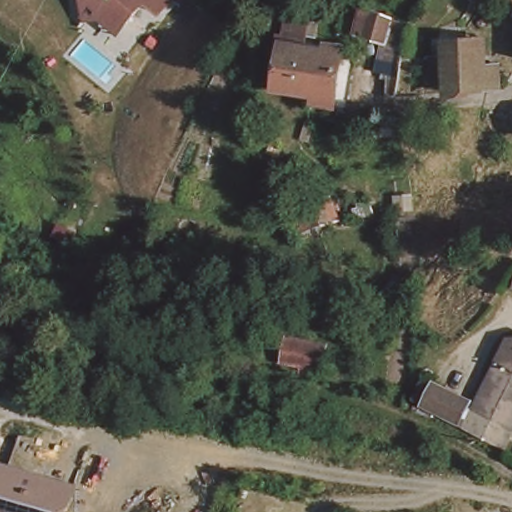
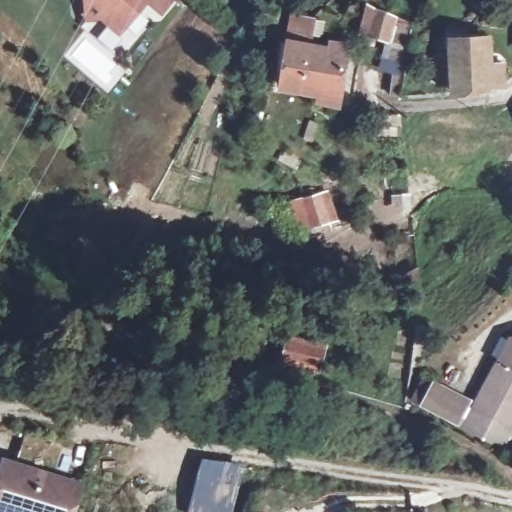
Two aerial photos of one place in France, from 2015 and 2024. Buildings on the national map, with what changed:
unchanged [(95,19),(85,11),(85,0),(171,0),(160,13),(145,0),(121,29),(118,33),(100,18),(95,19)]
unchanged [(173,0),(179,0),(176,3),(173,0)]
unchanged [(381,70),(386,43),(361,35),(367,8),(402,23),(399,47),(396,73),(381,70)]
unchanged [(333,43),(350,46),(349,52),(342,98),(340,97),(339,105),(322,103),(324,94),(289,88),(290,77),(279,75),(285,43),(290,44),(296,15),(317,19),(313,46),(332,49),(333,43)]
unchanged [(500,66),(502,85),(490,88),(468,90),(452,91),(452,84),(437,84),(436,57),(450,55),(450,53),(450,38),(486,39),(487,54),(487,63),(500,66)]
unchanged [(332,223),(298,247),(282,200),(324,189),(332,223)]
unchanged [(326,353),(321,374),(288,366),(293,345),(326,353)]
unchanged [(448,398),(479,414),(503,369),(512,352),(512,446),(506,456),(436,422),(416,410),(428,387),(448,398)]
unchanged [(82,484),(73,512),(0,512),(0,457),(82,484)]
new [(232,512),(188,512),(202,458),(244,464),(232,512)]

